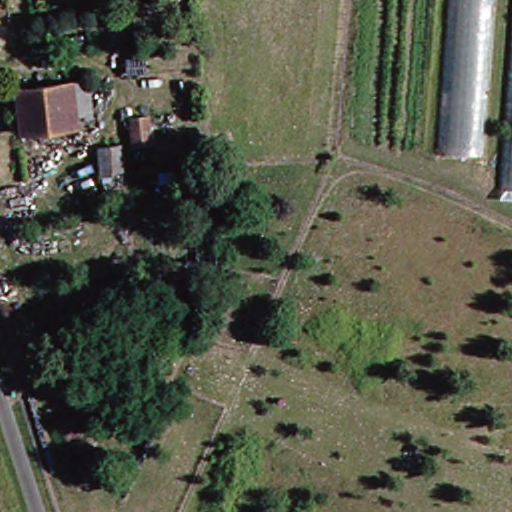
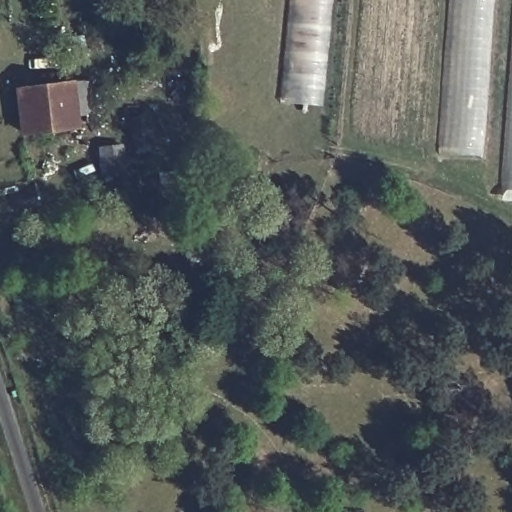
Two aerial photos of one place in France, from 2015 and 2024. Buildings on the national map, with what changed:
new [(324,107),(279,104),(287,0),(334,0),(324,107)]
unchanged [(491,157),(439,152),(450,0),(502,0),(491,157)]
unchanged [(512,71),(512,199),(504,198),(512,71)]
unchanged [(83,79),(93,119),(60,127),(50,87),(83,79)]
unchanged [(13,139),(3,99),(50,87),(60,127),(13,139)]
unchanged [(156,112),(160,144),(135,146),(131,116),(156,112)]
unchanged [(97,189),(95,163),(117,162),(119,187),(97,189)]

